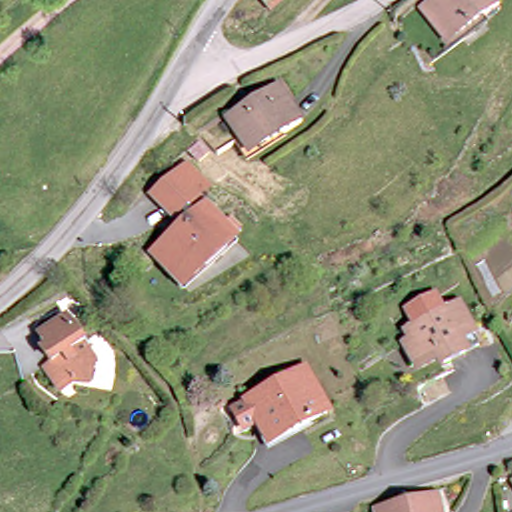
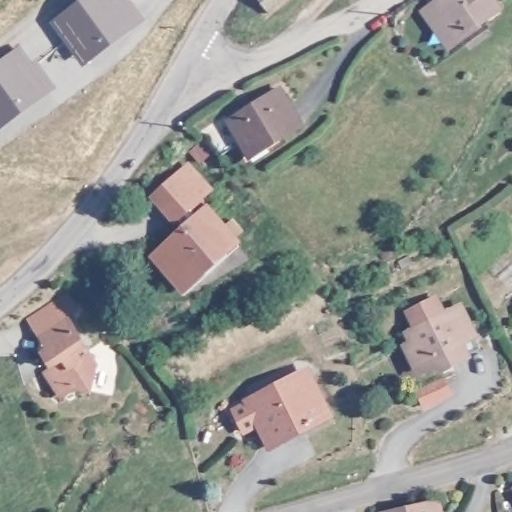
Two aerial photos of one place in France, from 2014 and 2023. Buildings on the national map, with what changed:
new [(130,0),(145,19),(84,68),(48,21),(77,0),(130,0)]
unchanged [(255,6),(262,0),(299,0),(300,1),(271,25),(255,6)]
unchanged [(435,10),(449,0),(488,0),(502,19),(483,31),(487,37),(464,53),(452,60),(423,18),(435,10)]
new [(57,88),(0,132),(0,60),(21,44),(57,88)]
unchanged [(274,155),(270,149),(255,160),(233,129),(251,118),(253,122),(270,110),(267,106),(283,96),(307,133),(274,155)]
unchanged [(216,185),(179,224),(150,199),(185,160),(216,185)]
unchanged [(242,242),(187,293),(151,254),(210,205),(242,242)]
unchanged [(460,313),(478,353),(442,372),(440,366),(417,376),(405,351),(413,348),(409,338),(460,313)]
unchanged [(40,339),(70,321),(100,370),(95,396),(80,391),(62,403),(47,377),(50,374),(42,359),(48,356),(40,339)]
unchanged [(312,377),(335,418),(282,451),(268,431),(258,436),(246,415),(312,377)]
unchanged [(431,512),(418,512),(430,509),(431,512)]

